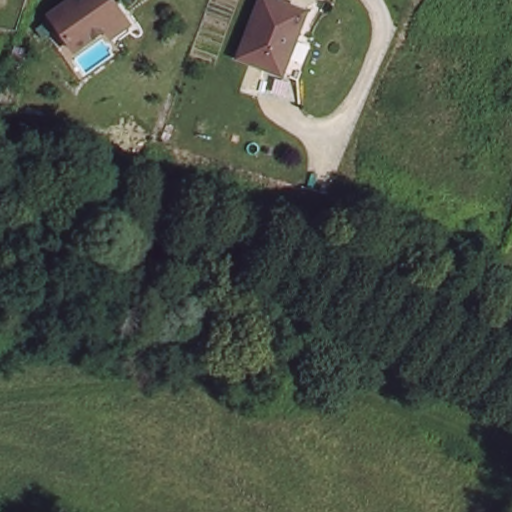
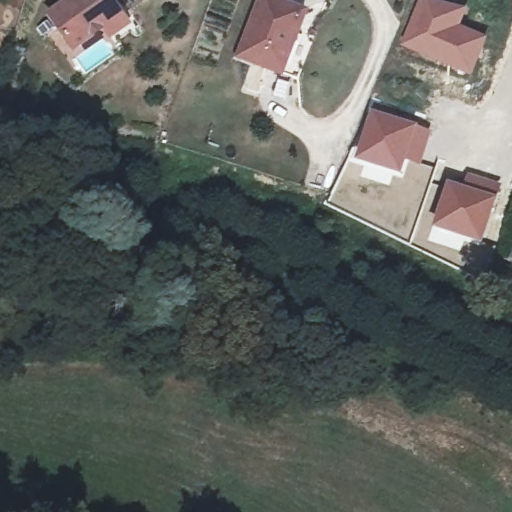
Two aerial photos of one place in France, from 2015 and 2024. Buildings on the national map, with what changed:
unchanged [(102,21),(71,42),(47,7),(57,0),(115,0),(126,16),(108,29),(102,21)]
unchanged [(292,74),(276,68),(232,51),(251,0),(286,0),(300,5),(292,26),(309,32),(292,74)]
new [(442,0),(469,7),(462,24),(488,35),(472,75),(397,45),(417,0),(442,0)]
new [(370,110),(432,131),(420,167),(407,163),(402,179),(354,162),(370,110)]
new [(448,182),(462,186),(466,173),(501,183),(482,247),(432,230),(448,182)]

